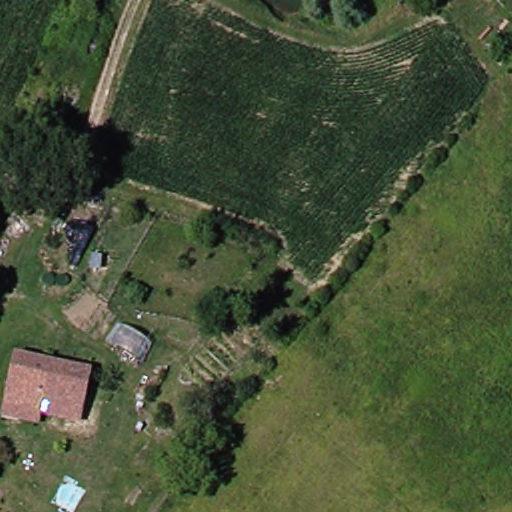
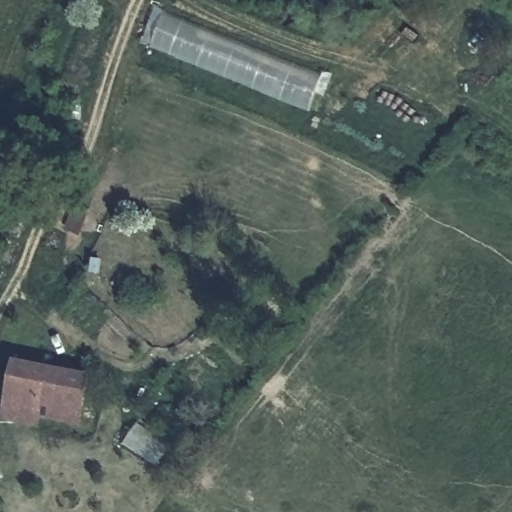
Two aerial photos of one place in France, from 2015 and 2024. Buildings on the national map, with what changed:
new [(308,111),(149,47),(162,10),(321,76),(308,111)]
unchanged [(39,370),(82,380),(73,431),(0,419),(0,399),(9,347),(40,352),(39,370)]

